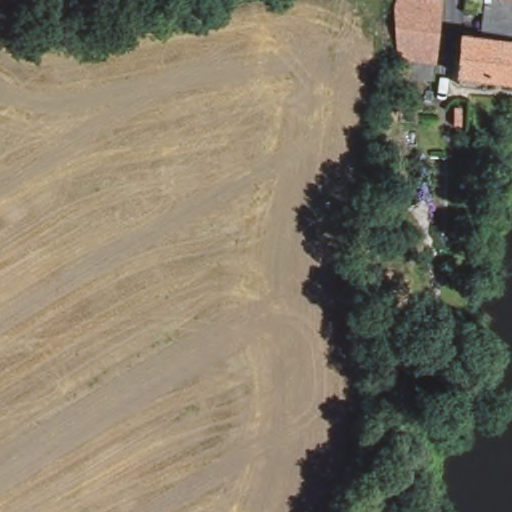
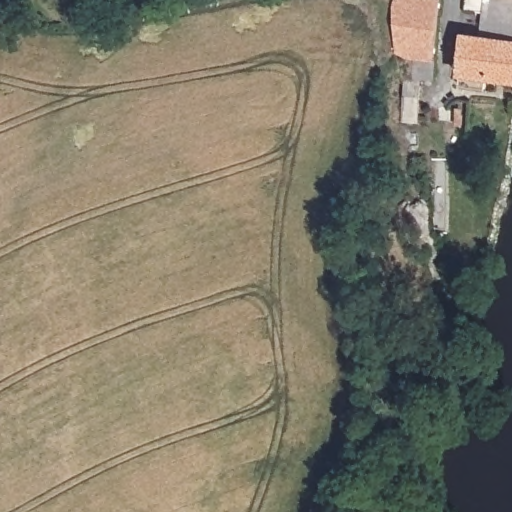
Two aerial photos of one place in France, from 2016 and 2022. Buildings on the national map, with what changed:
unchanged [(444,80),(413,79),(414,60),(388,57),(391,0),(447,0),(444,80)]
unchanged [(462,35),(480,36),(483,0),(512,0),(512,84),(455,78),(462,35)]

